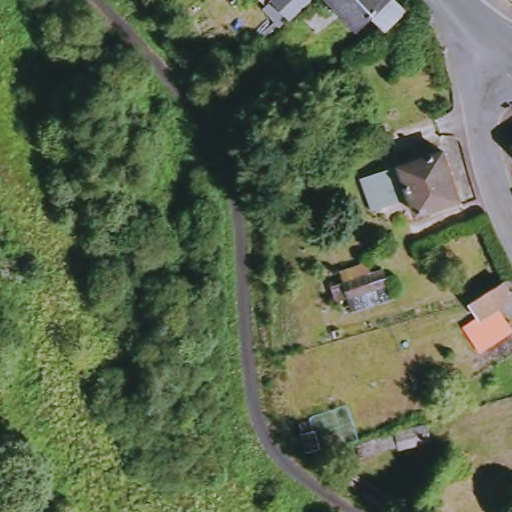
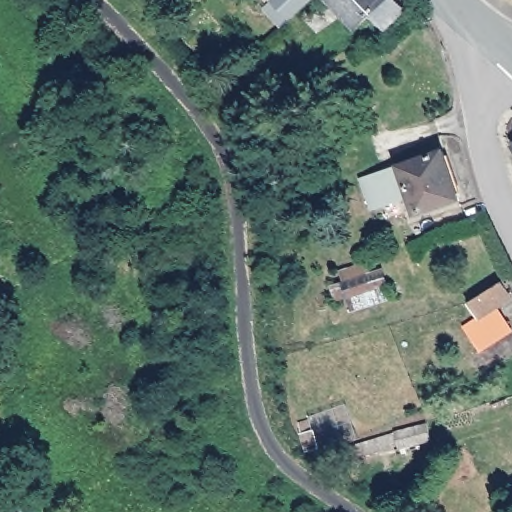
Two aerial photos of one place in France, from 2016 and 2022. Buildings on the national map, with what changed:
unchanged [(273,2),(274,0),(312,0),(292,19),(273,2)]
unchanged [(374,8),(361,19),(342,0),(401,0),(403,2),(389,21),(387,22),(374,8)]
unchanged [(423,210),(418,195),(380,207),(371,175),(452,147),(465,196),(423,210)]
unchanged [(372,262),(378,276),(395,268),(404,298),(357,314),(347,287),(351,284),(345,268),(372,262)]
unchanged [(512,287),(512,307),(506,312),(512,320),(512,334),(487,352),(471,332),(488,317),(481,306),(511,285),(512,287)]
unchanged [(395,452),(393,449),(369,456),(370,457),(361,458),(356,445),(423,427),(428,443),(395,452)]

